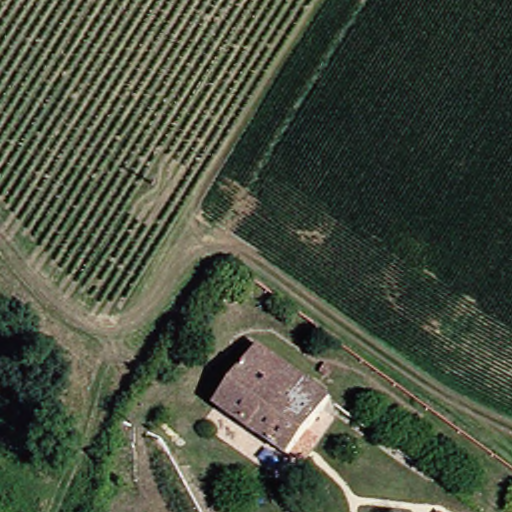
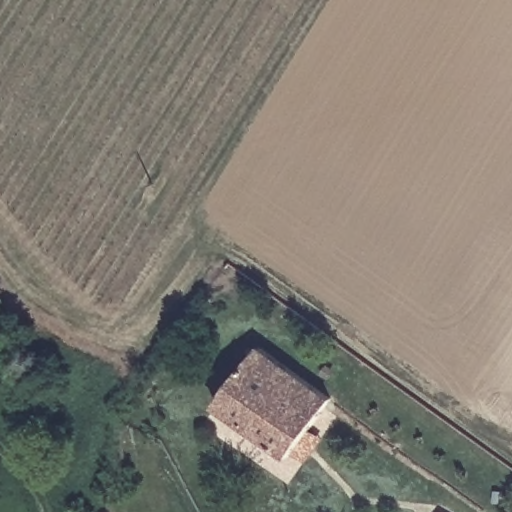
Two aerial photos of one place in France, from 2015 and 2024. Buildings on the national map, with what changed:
unchanged [(285,454),(214,407),(255,349),(322,400),(285,454)]
unchanged [(0,384),(0,367),(8,374),(0,384)]

